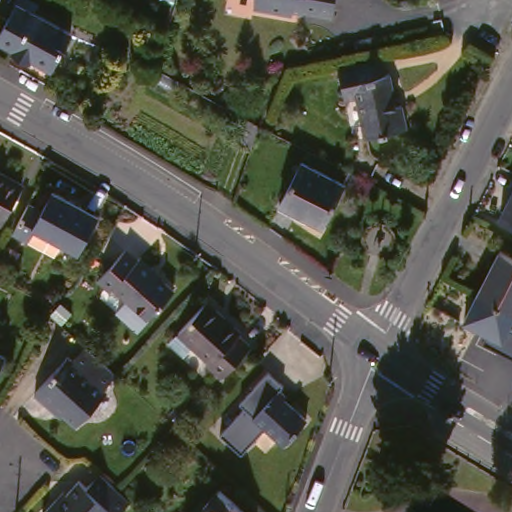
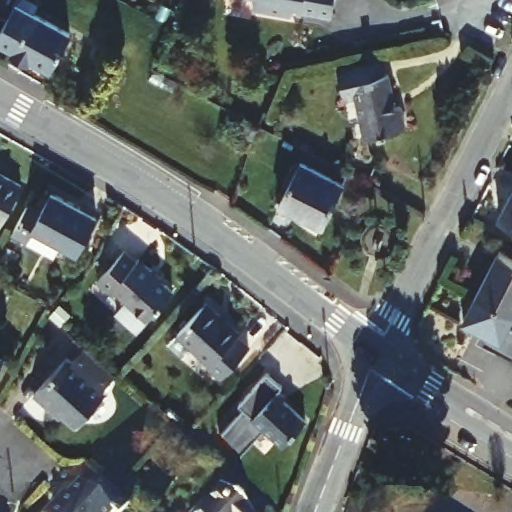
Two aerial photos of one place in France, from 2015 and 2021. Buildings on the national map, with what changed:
unchanged [(9,26),(0,15),(0,0),(10,0),(9,15),(32,28),(37,19),(28,14),(32,6),(42,12),(57,20),(52,28),(90,49),(70,84),(50,73),(50,75),(32,65),(34,63),(17,53),(26,36),(9,26)]
unchanged [(298,8),(297,12),(258,5),(259,0),(341,0),(338,15),(298,8)]
unchanged [(400,109),(405,108),(410,131),(370,141),(358,100),(350,103),(341,74),(359,69),(385,63),(388,78),(391,77),(400,109)]
unchanged [(315,165),(356,189),(333,229),(292,206),(315,165)]
unchanged [(34,186),(12,227),(0,220),(0,167),(34,186)]
unchanged [(41,249),(24,239),(23,239),(40,209),(53,215),(64,195),(110,220),(90,260),(73,251),(66,262),(41,249)]
unchanged [(512,205),(512,227),(503,223),(512,205)]
unchanged [(7,246),(18,252),(6,274),(0,270),(0,259),(7,246)]
unchanged [(138,263),(141,259),(160,275),(159,277),(176,292),(154,319),(117,288),(114,293),(101,283),(126,253),(138,263)]
unchanged [(512,259),(512,315),(487,302),(482,299),(505,255),(512,259)]
unchanged [(215,304),(247,334),(245,338),(259,351),(230,381),(216,368),(219,365),(202,349),(191,361),(175,346),(215,304)]
unchanged [(108,391),(111,394),(80,428),(59,408),(55,411),(37,395),(71,358),(77,364),(90,349),(120,377),(108,391)]
unchanged [(7,357),(0,370),(0,353),(7,357)]
unchanged [(283,384),(275,393),(306,418),(283,446),(262,429),(240,454),(216,436),(241,410),(236,405),(267,371),(283,384)]
unchanged [(125,503),(117,512),(56,512),(60,508),(64,510),(82,489),(90,496),(102,483),(119,497),(125,503)]
unchanged [(224,493),(244,512),(206,512),(224,493)]

